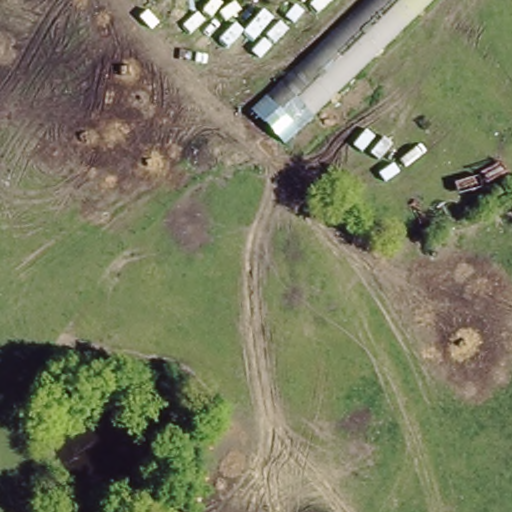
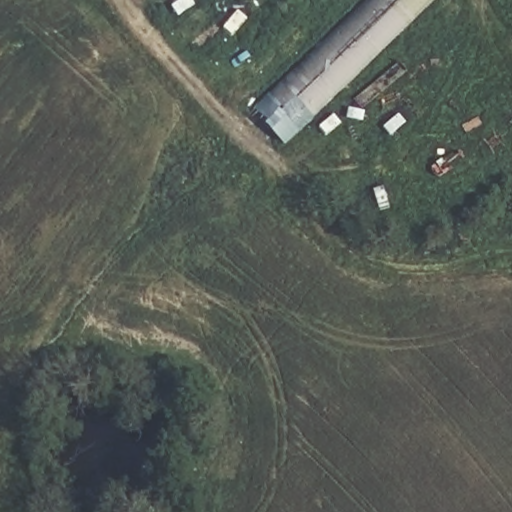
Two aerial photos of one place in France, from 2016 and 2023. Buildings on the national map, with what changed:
unchanged [(286,147),(254,115),(370,0),(434,0),(286,147)]

